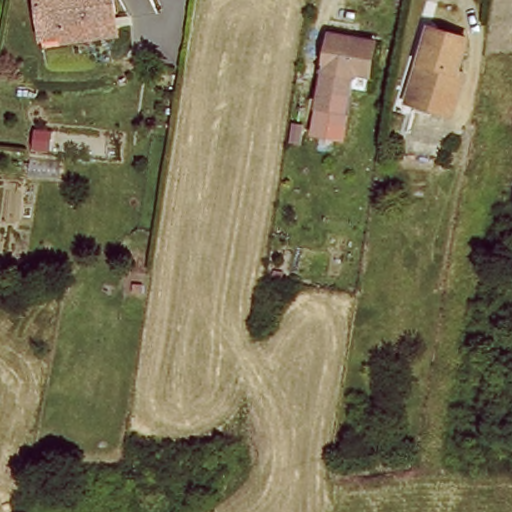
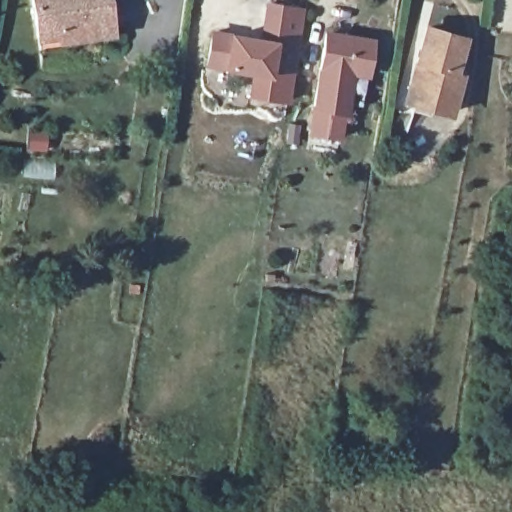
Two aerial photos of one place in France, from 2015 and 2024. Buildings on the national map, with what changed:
unchanged [(65,30),(38,33),(33,0),(111,0),(113,15),(115,26),(65,30)]
new [(258,32),(260,0),(303,2),(296,100),(247,95),(248,70),(204,67),(208,28),(258,32)]
unchanged [(410,61),(417,26),(455,33),(450,66),(455,68),(450,110),(414,105),(404,104),(410,61)]
unchanged [(343,86),(334,137),(304,132),(313,81),(321,31),(365,37),(372,40),(360,90),(357,88),(343,86)]

